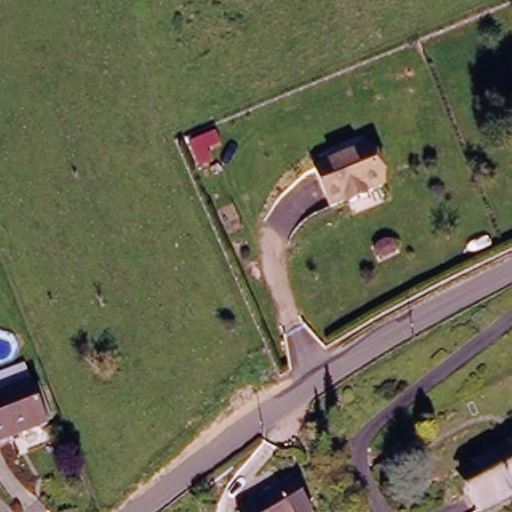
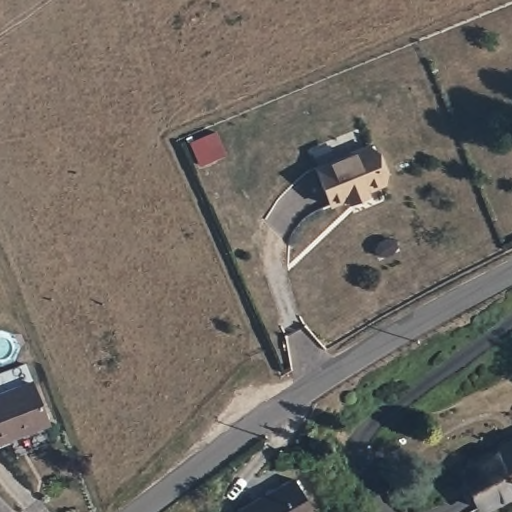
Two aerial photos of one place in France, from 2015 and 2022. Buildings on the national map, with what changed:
unchanged [(368,142),(385,181),(367,189),(369,194),(350,201),(348,197),(330,204),(314,166),(368,142)]
unchanged [(0,373),(24,364),(30,381),(0,392),(0,373)]
unchanged [(0,442),(0,392),(30,381),(47,425),(0,442)]
unchanged [(478,512),(457,471),(512,442),(512,493),(478,512)]
unchanged [(233,506),(288,476),(309,512),(236,512),(233,506)]

